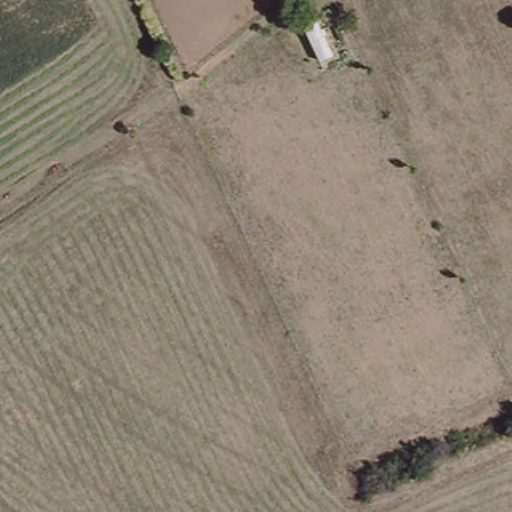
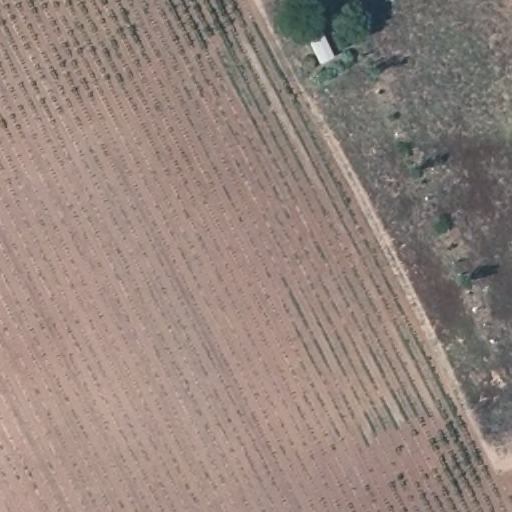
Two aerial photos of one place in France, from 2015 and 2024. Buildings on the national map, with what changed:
unchanged [(321,63),(303,25),(317,18),(334,54),(321,63)]

